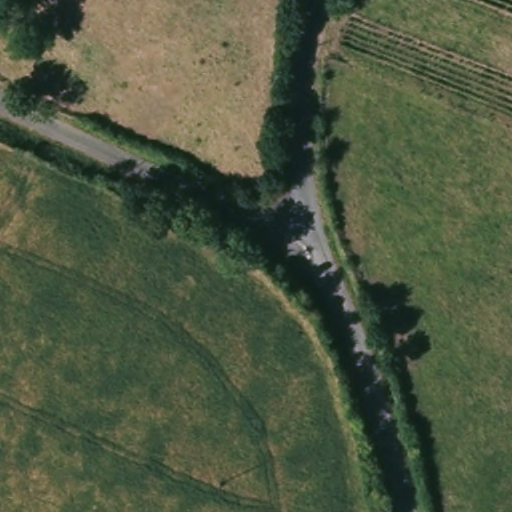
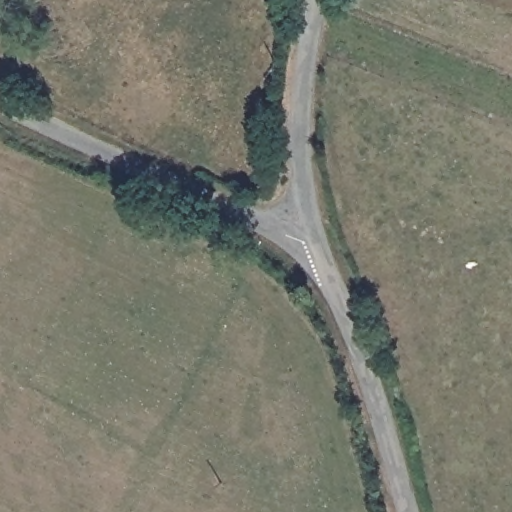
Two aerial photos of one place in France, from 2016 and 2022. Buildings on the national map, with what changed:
[]

